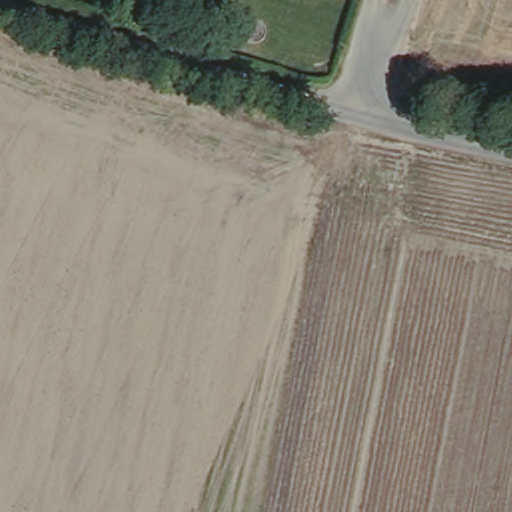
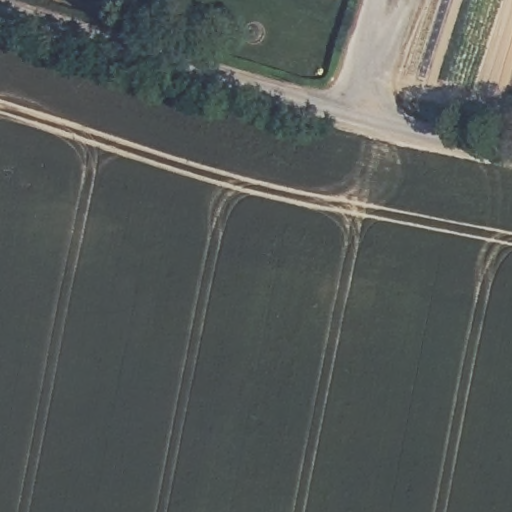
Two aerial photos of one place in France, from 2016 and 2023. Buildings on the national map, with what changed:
unchanged [(337,3),(329,0),(338,0),(337,3)]

